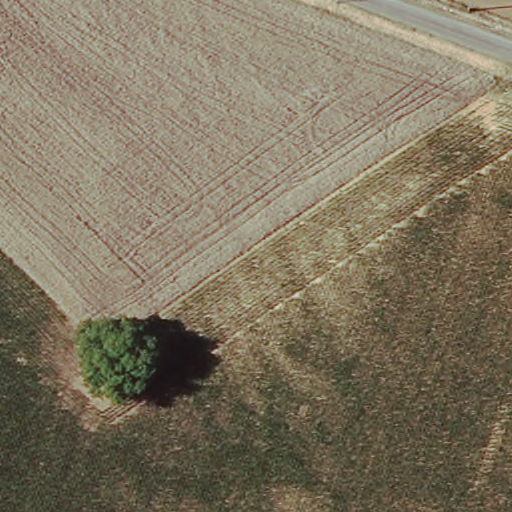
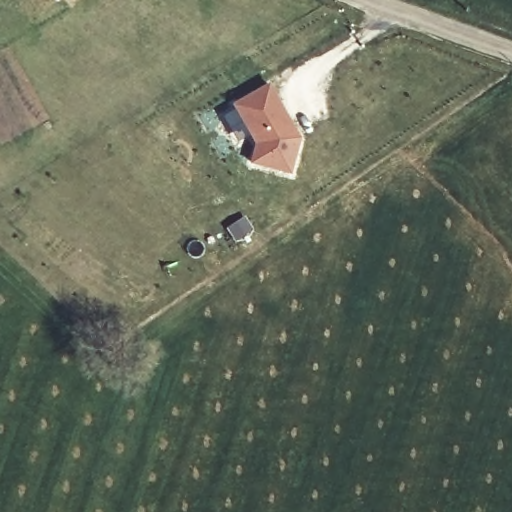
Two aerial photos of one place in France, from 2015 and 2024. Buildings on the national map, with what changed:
new [(233,111),(230,103),(271,81),(302,136),(292,175),(250,163),(253,144),(242,125),(230,131),(221,115),(233,111)]

